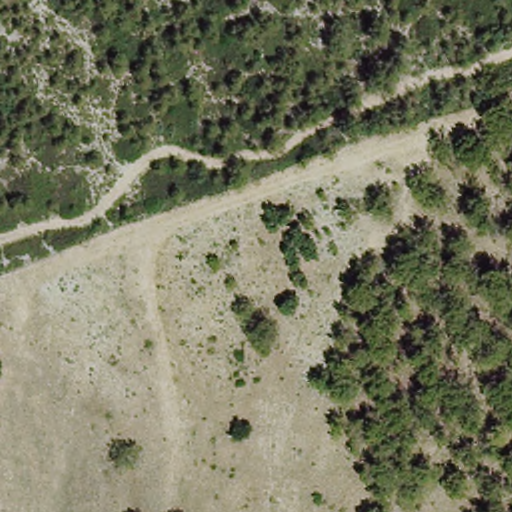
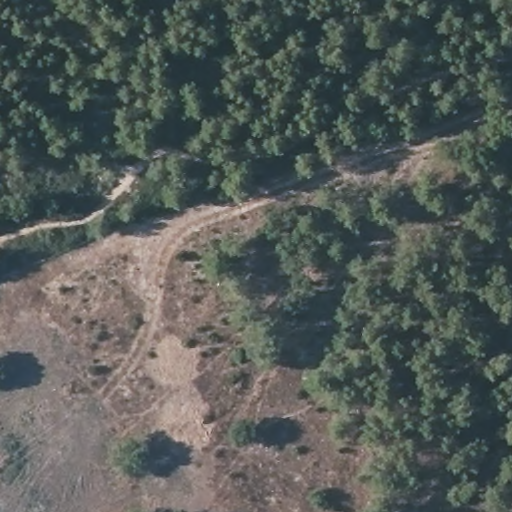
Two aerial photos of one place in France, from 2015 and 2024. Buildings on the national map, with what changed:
[]

